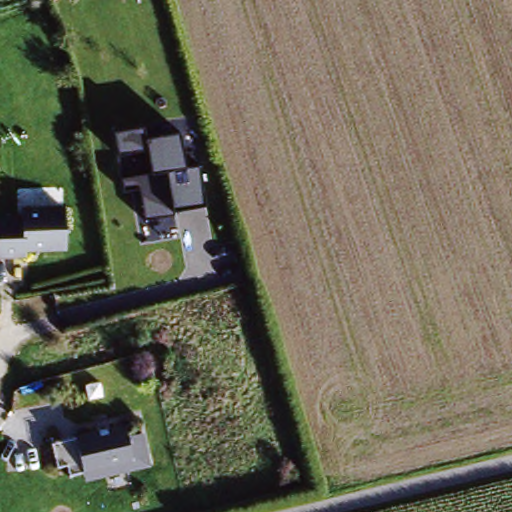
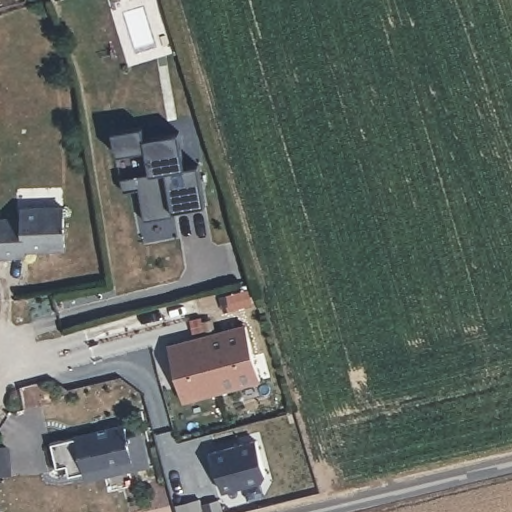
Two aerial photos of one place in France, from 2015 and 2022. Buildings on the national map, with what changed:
unchanged [(149,150),(117,155),(113,129),(144,124),(147,137),(180,131),(186,166),(199,165),(205,205),(174,210),(175,215),(145,219),(140,187),(124,190),(122,178),(152,172),(149,150)]
unchanged [(29,215),(29,205),(70,203),(70,247),(30,247),(30,253),(2,253),(2,215),(29,215)]
new [(252,291),(255,306),(226,312),(223,297),(252,291)]
new [(172,346),(249,327),(264,383),(186,403),(172,346)]
unchanged [(92,477),(90,469),(74,473),(72,463),(62,465),(55,438),(132,419),(135,431),(150,427),(155,453),(157,460),(92,477)]
new [(259,440),(268,474),(265,480),(225,491),(215,452),(259,440)]

